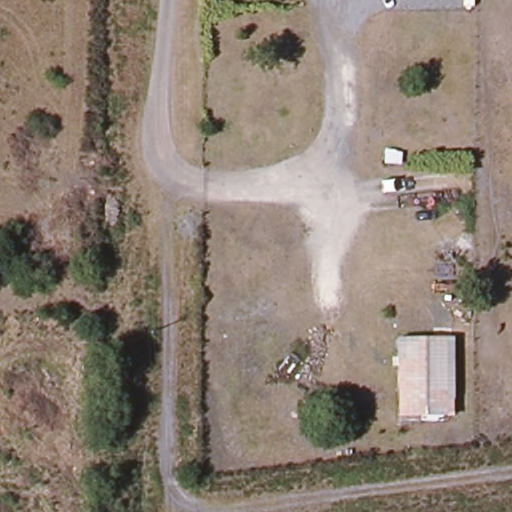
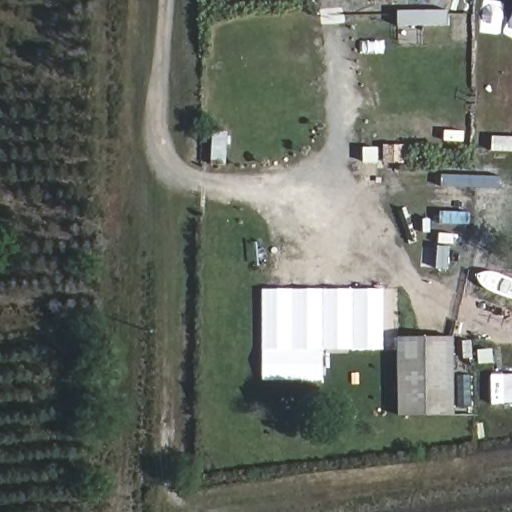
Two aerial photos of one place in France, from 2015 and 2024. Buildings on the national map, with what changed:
new [(382,351),(326,348),(325,380),(262,379),(262,290),(382,290),(382,351)]
unchanged [(455,416),(397,417),(397,338),(454,338),(455,416)]

